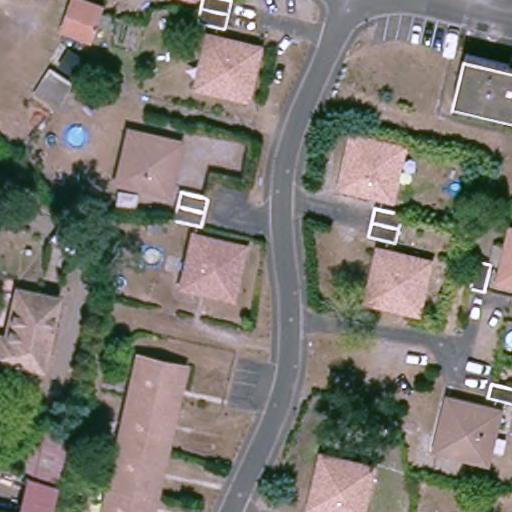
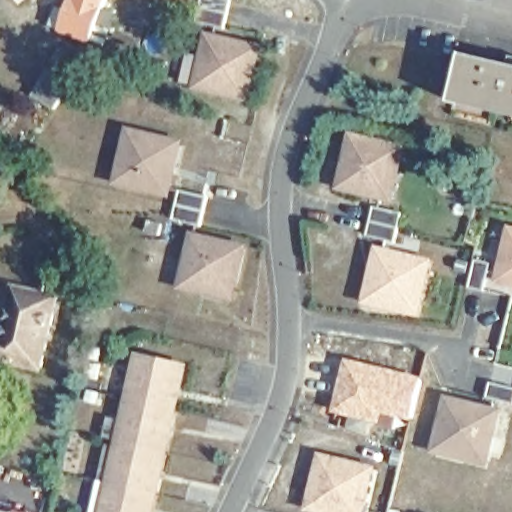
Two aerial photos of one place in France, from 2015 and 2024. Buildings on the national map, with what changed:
unchanged [(88,35),(61,31),(67,0),(72,0),(93,4),(88,35)]
unchanged [(206,12),(210,0),(221,0),(236,5),(233,20),(228,32),(203,27),(206,12)]
unchanged [(244,101),(202,90),(213,46),(256,57),(244,101)]
unchanged [(464,55),(512,66),(512,117),(453,102),(464,55)]
unchanged [(55,108),(32,94),(49,68),(71,80),(55,108)]
unchanged [(167,194),(119,182),(130,139),(178,151),(167,194)]
unchanged [(392,200),(343,187),(355,139),(404,151),(392,200)]
unchanged [(175,219),(179,204),(183,188),(209,195),(204,210),(200,226),(175,219)]
unchanged [(366,234),(370,221),(373,207),(398,214),(394,227),(390,240),(366,234)]
unchanged [(229,297),(186,287),(197,238),(241,250),(229,297)]
unchanged [(415,313),(370,301),(382,254),(426,266),(415,313)]
unchanged [(486,287),(473,283),(479,256),(494,260),(486,287)]
unchanged [(512,259),(512,285),(506,283),(512,259)]
unchanged [(42,367),(3,360),(0,359),(0,338),(3,338),(16,288),(58,298),(42,367)]
new [(344,357),(421,377),(410,421),(383,415),(380,426),(330,412),(344,357)]
unchanged [(177,417),(132,407),(143,363),(187,373),(177,417)]
unchanged [(494,387),(512,392),(512,407),(490,401),(494,387)]
unchanged [(486,459),(440,447),(451,403),(496,415),(486,459)]
unchanged [(177,417),(169,455),(124,443),(132,407),(177,417)]
unchanged [(30,418),(72,427),(53,512),(9,512),(30,418)]
unchanged [(158,497),(113,486),(124,443),(169,455),(158,497)]
unchanged [(356,512),(330,512),(309,507),(321,460),(367,472),(356,512)]
unchanged [(155,512),(107,512),(113,486),(158,497),(155,512)]
unchanged [(9,512),(0,512),(0,509),(9,512)]

